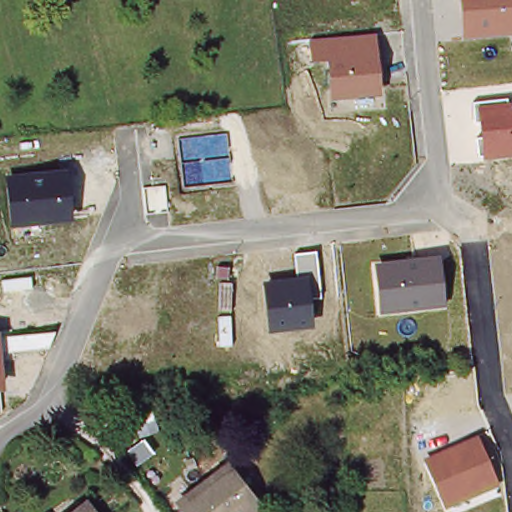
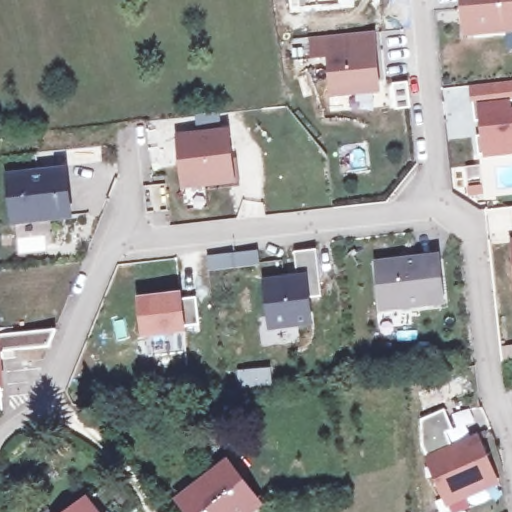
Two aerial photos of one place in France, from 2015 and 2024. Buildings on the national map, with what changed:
unchanged [(459,0),(512,0),(512,34),(463,38),(459,0)]
unchanged [(374,33),(381,95),(331,100),(328,60),(311,61),(308,39),(374,33)]
unchanged [(508,102),(512,102),(512,156),(479,160),(476,140),(482,140),(479,121),(474,121),(473,102),(508,98),(508,102)]
new [(183,212),(181,189),(175,139),(224,134),(230,184),(203,186),(206,210),(183,212)]
unchanged [(66,169),(72,220),(10,227),(4,175),(66,169)]
unchanged [(296,277),(293,252),(316,250),(321,298),(309,300),(313,326),(271,331),(262,280),(296,277)]
unchanged [(438,255),(444,305),(381,314),(374,262),(438,255)]
new [(143,337),(138,297),(184,292),(189,332),(143,337)]
unchanged [(5,390),(0,390),(0,330),(5,390)]
new [(253,371),(269,369),(271,382),(254,384),(242,385),(241,371),(253,371)]
unchanged [(478,436),(499,485),(444,508),(424,459),(478,436)]
unchanged [(224,463),(256,504),(246,512),(182,512),(174,502),(224,463)]
unchanged [(83,502),(90,512),(70,512),(83,502)]

